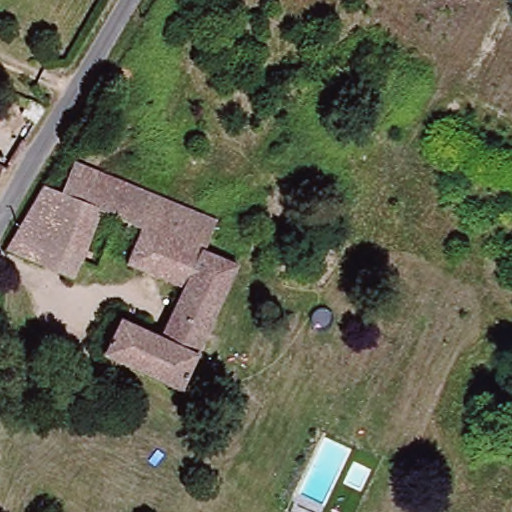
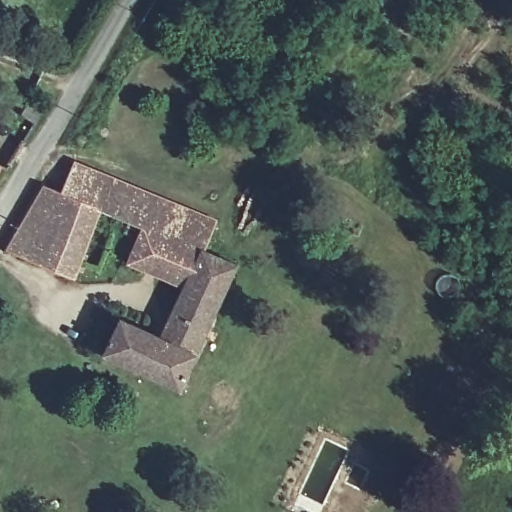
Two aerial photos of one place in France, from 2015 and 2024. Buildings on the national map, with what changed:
unchanged [(202,252),(122,219),(120,217),(107,211),(73,198),(59,191),(76,161),(217,221),(202,252)]
unchanged [(40,184),(59,191),(73,198),(107,211),(120,217),(94,270),(82,266),(73,278),(2,246),(40,184)]
unchanged [(173,395),(105,361),(124,321),(159,339),(184,288),(124,261),(132,241),(119,233),(122,219),(202,252),(237,268),(173,395)]

